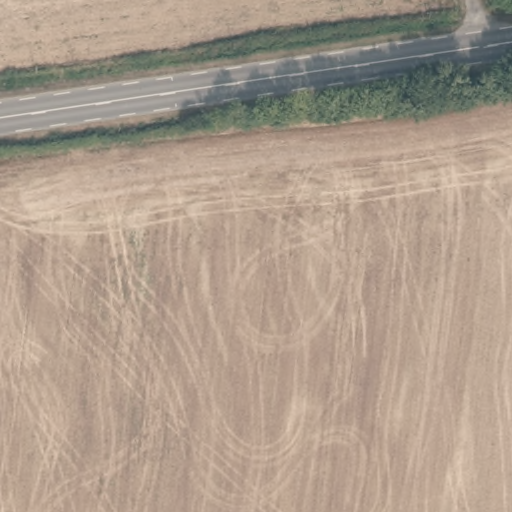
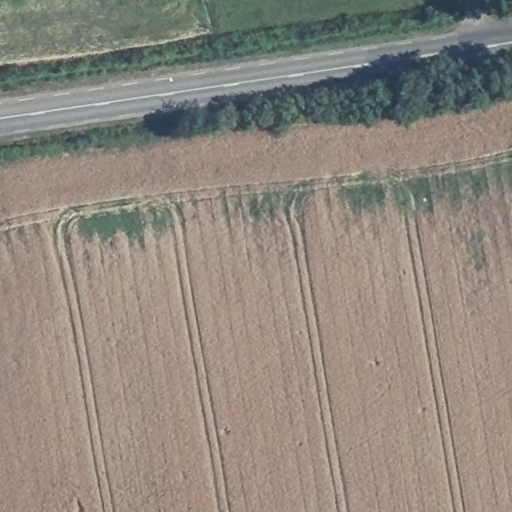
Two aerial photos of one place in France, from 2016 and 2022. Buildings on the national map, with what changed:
[]

